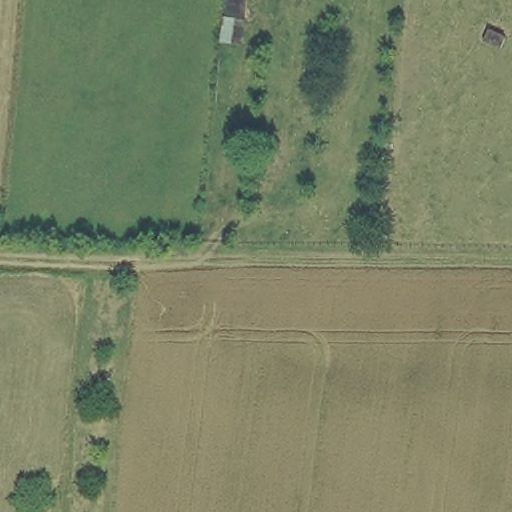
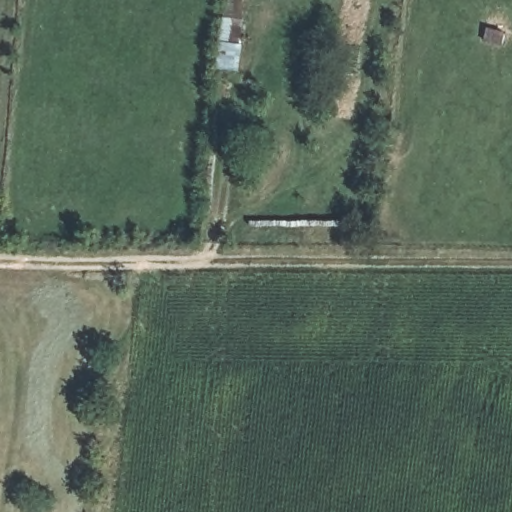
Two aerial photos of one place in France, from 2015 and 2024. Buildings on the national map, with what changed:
unchanged [(226,0),(248,0),(245,48),(225,47),(226,0)]

